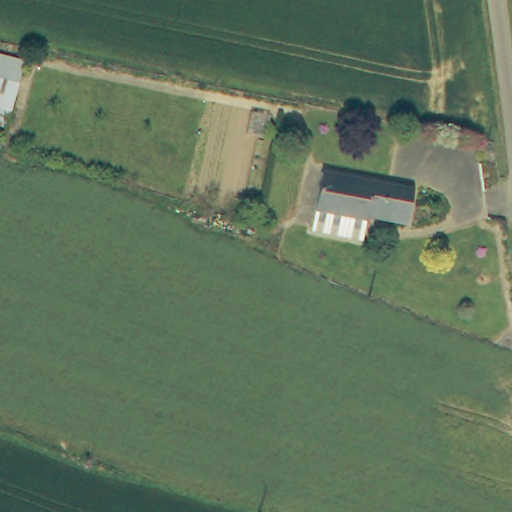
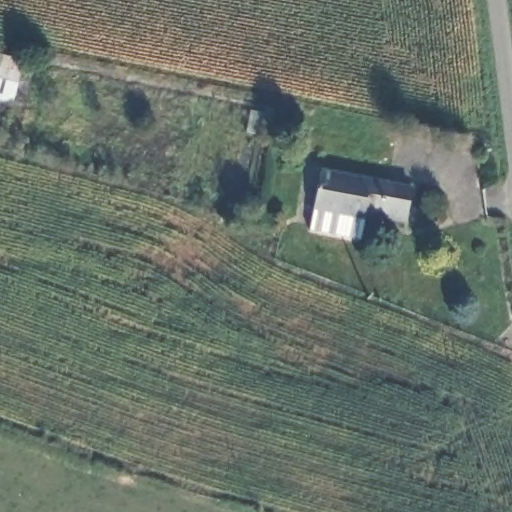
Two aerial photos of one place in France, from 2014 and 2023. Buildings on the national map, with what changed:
unchanged [(6,118),(0,116),(0,50),(23,55),(6,118)]
unchanged [(264,136),(246,132),(250,112),(268,115),(264,136)]
unchanged [(412,184),(405,218),(365,211),(364,216),(313,206),(321,166),(412,184)]
unchanged [(360,235),(310,225),(313,206),(364,216),(360,235)]

